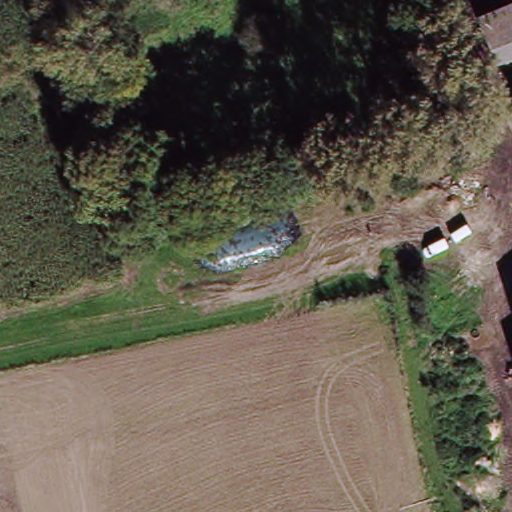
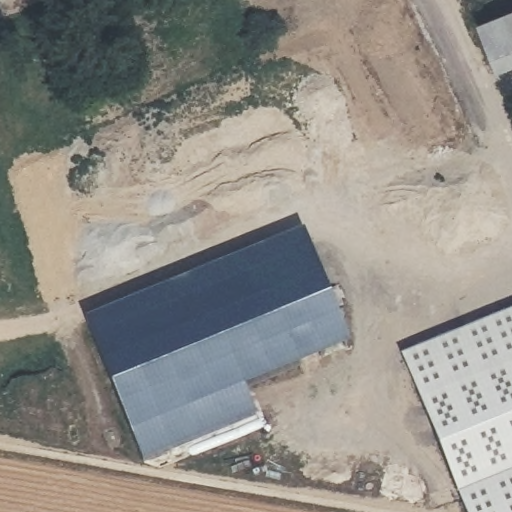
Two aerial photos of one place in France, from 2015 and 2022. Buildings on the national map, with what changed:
unchanged [(512,64),(490,72),(474,23),(512,8),(512,64)]
new [(349,347),(243,389),(255,416),(144,462),(85,321),(303,234),(349,347)]
new [(512,512),(466,512),(403,356),(512,312),(512,512)]

